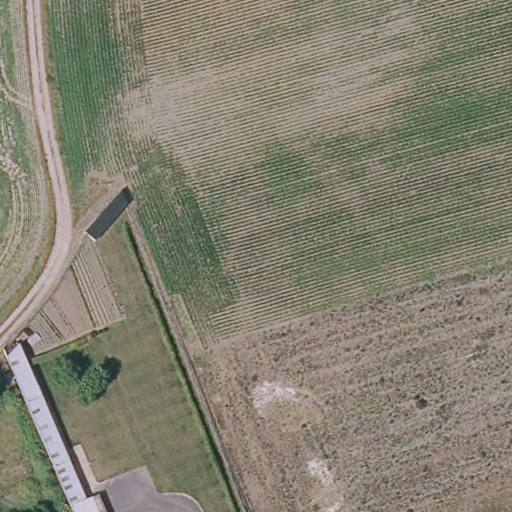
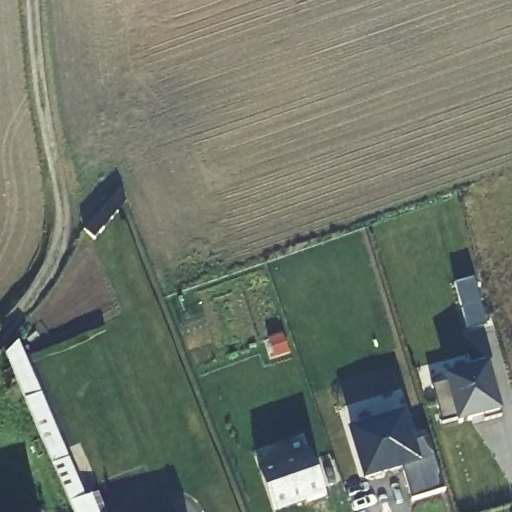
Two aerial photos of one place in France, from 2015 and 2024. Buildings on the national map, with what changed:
new [(127,202),(105,228),(95,219),(121,188),(127,202)]
new [(486,327),(468,331),(455,283),(474,278),(486,327)]
unchanged [(23,347),(92,510),(96,509),(97,512),(69,512),(4,363),(23,347)]
new [(449,382),(446,376),(487,365),(500,415),(484,418),(484,411),(444,421),(434,386),(449,382)]
new [(403,416),(411,443),(428,436),(445,489),(414,497),(405,464),(367,473),(355,431),(403,416)]
new [(310,450),(324,492),(274,509),(260,470),(310,450)]

